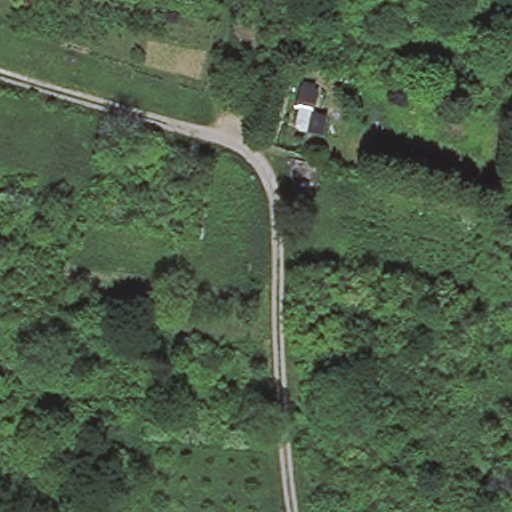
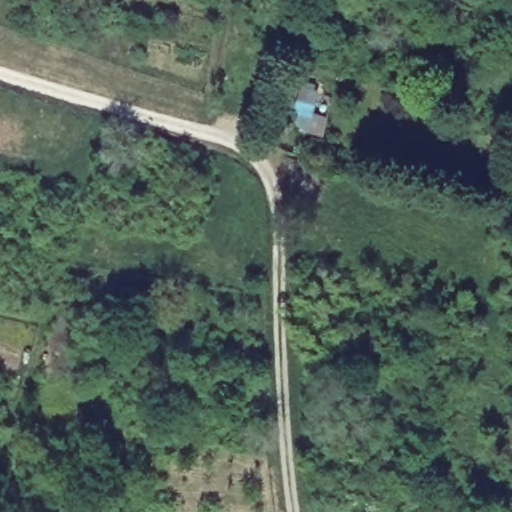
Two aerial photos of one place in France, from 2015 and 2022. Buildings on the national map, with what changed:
unchanged [(319,86),(316,126),(291,124),(297,84),(319,86)]

